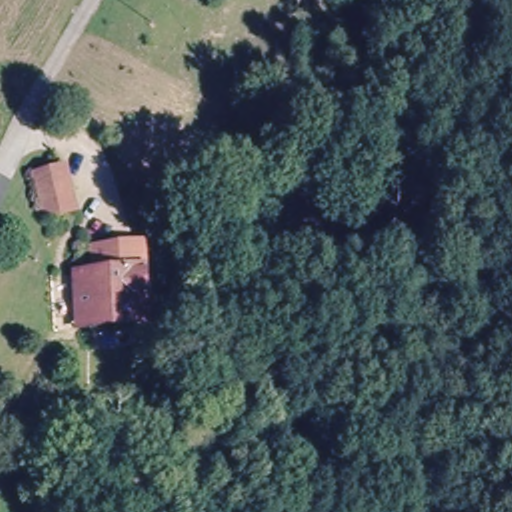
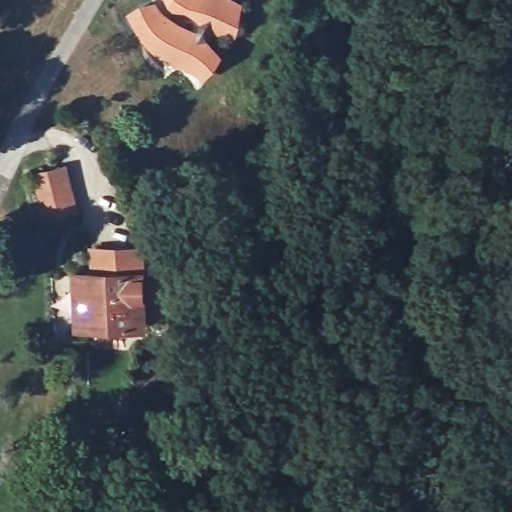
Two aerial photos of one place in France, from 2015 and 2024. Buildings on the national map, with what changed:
new [(191,71),(171,64),(160,58),(148,48),(140,39),(133,30),(126,15),(156,1),(164,12),(172,19),(180,23),(198,29),(200,24),(186,12),(166,12),(163,0),(237,0),(241,2),(230,38),(213,31),(209,39),(223,52),(203,79),(196,73),(191,71)]
unchanged [(66,164),(78,211),(45,220),(33,174),(66,164)]
unchanged [(93,246),(146,243),(147,264),(150,326),(128,326),(126,266),(95,268),(93,246)]
unchanged [(95,268),(126,266),(128,326),(71,333),(72,269),(95,268)]

